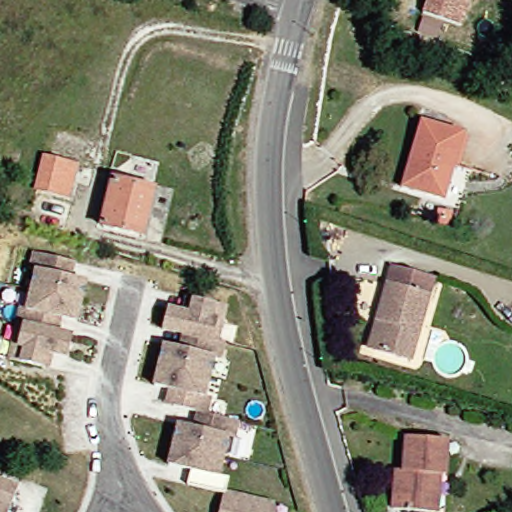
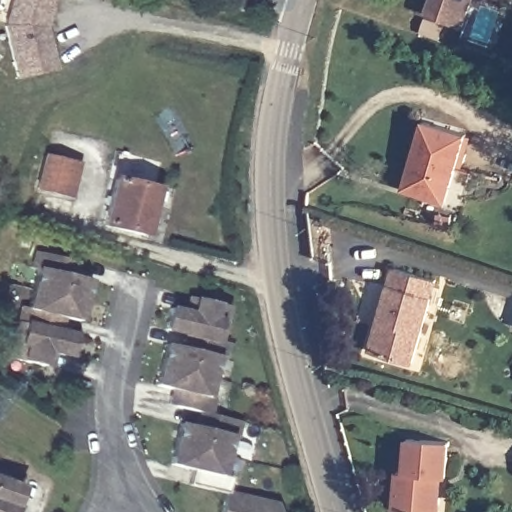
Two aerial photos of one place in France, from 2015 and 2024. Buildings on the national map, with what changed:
new [(3,27),(10,0),(55,0),(46,28),(55,71),(15,80),(3,27)]
unchanged [(462,26),(423,14),(427,0),(471,0),(462,26)]
unchanged [(404,190),(424,125),(466,137),(457,169),(472,174),(462,208),(446,203),(425,197),(404,190)]
unchanged [(49,155),(80,163),(72,195),(41,187),(49,155)]
unchanged [(111,182),(153,192),(141,239),(99,229),(111,182)]
unchanged [(48,361),(16,353),(24,318),(23,318),(27,302),(33,303),(42,264),(36,263),(40,247),(73,255),(80,256),(76,271),(92,275),(82,316),(66,312),(63,326),(79,330),(74,351),(58,347),(54,362),(48,361)]
unchanged [(379,319),(394,265),(436,277),(414,360),(377,349),(371,347),(379,319)]
unchanged [(195,482),(198,468),(176,462),(185,421),(201,425),(205,410),(180,404),(173,402),(176,387),(161,384),(170,343),(187,347),(190,333),(174,329),(168,328),(173,307),(189,310),(192,295),(199,297),(231,304),(223,339),(230,341),(226,357),(220,356),(211,395),(217,396),(214,412),(246,419),(242,435),(236,434),(226,473),(236,476),(233,491),(282,502),(284,512),(226,512),(231,491),(195,482)]
unchanged [(399,474),(406,474),(409,441),(451,444),(448,477),(443,477),(441,512),(401,512),(396,512),(399,474)]
unchanged [(26,497),(27,498),(27,500),(27,501),(27,502),(28,503),(28,506),(27,508),(27,509),(26,510),(25,512),(0,512),(0,477),(26,487),(24,494),(25,495),(26,497)]

